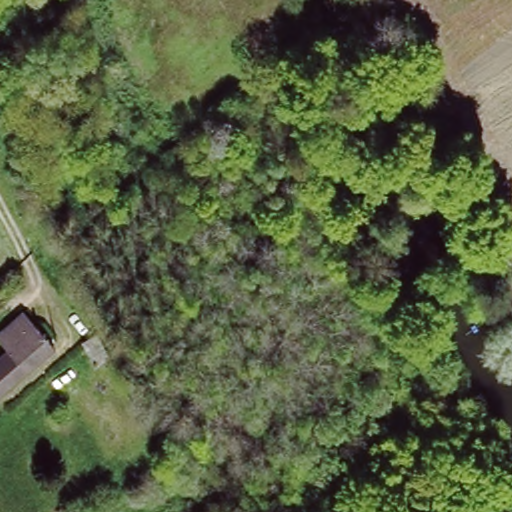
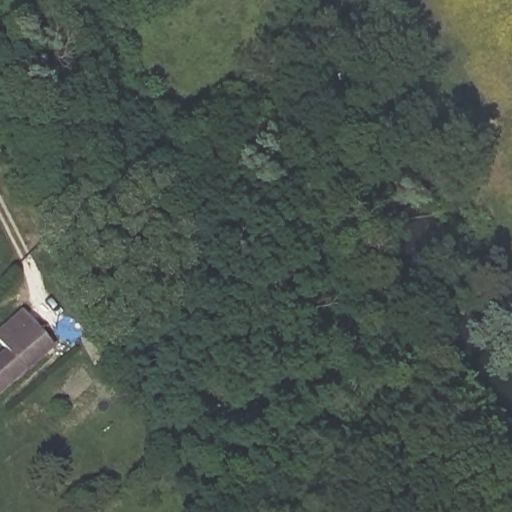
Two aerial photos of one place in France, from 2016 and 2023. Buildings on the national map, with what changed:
unchanged [(0,346),(0,335),(24,316),(54,353),(0,399),(0,362),(8,356),(0,346)]
unchanged [(80,341),(95,333),(107,357),(94,364),(80,341)]

